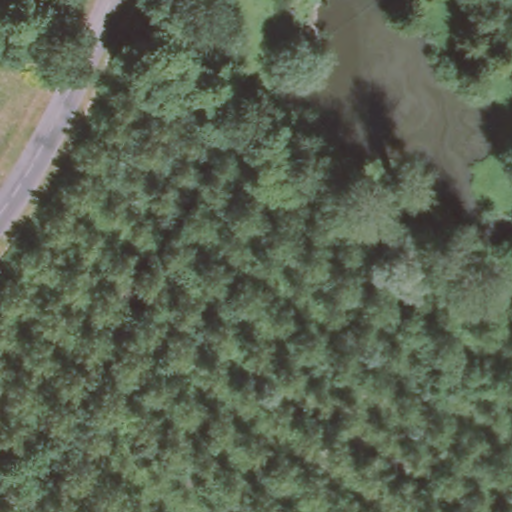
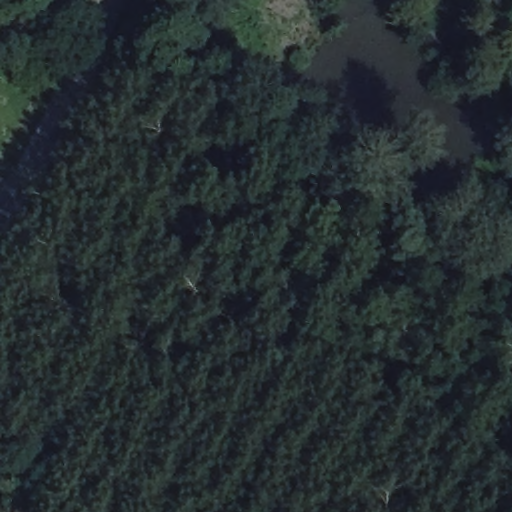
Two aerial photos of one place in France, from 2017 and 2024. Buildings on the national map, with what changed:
unchanged [(37,63),(43,46),(53,50),(46,67),(37,63)]

